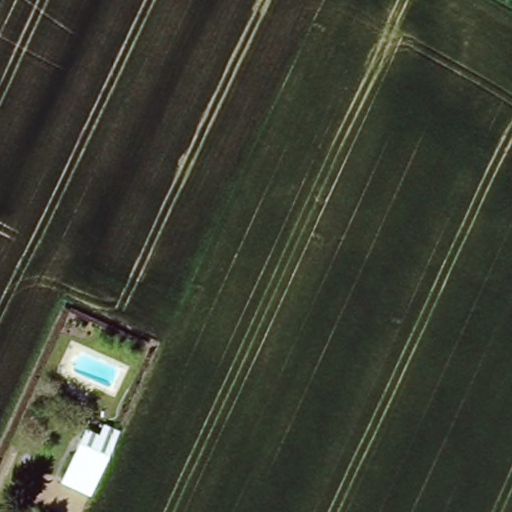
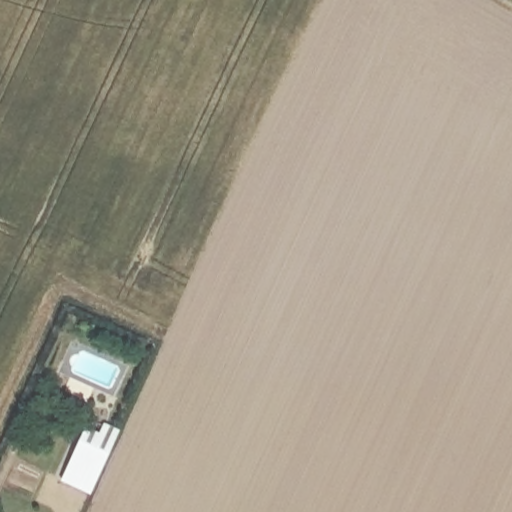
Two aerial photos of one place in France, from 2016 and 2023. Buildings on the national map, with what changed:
unchanged [(88,500),(59,487),(81,437),(95,443),(101,429),(117,436),(88,500)]

